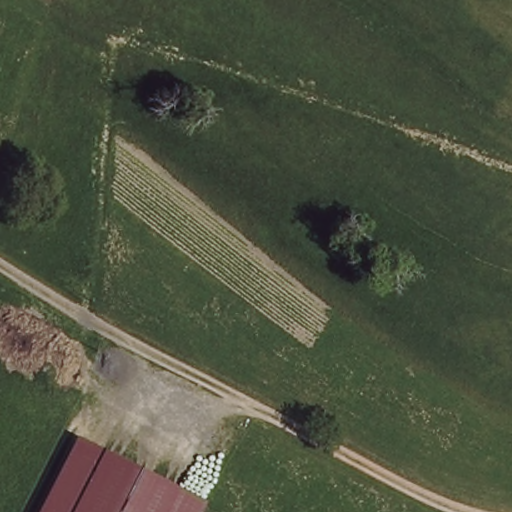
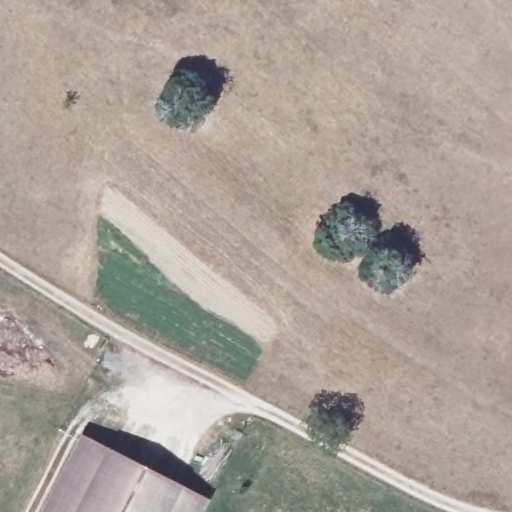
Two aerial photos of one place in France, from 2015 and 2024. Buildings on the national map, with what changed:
unchanged [(198,512),(46,512),(81,443),(202,504),(198,512)]

